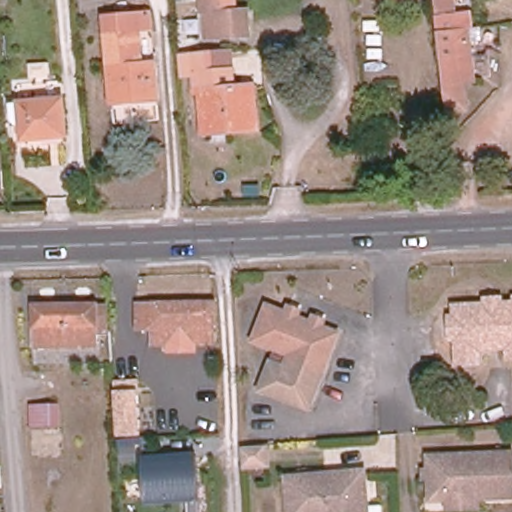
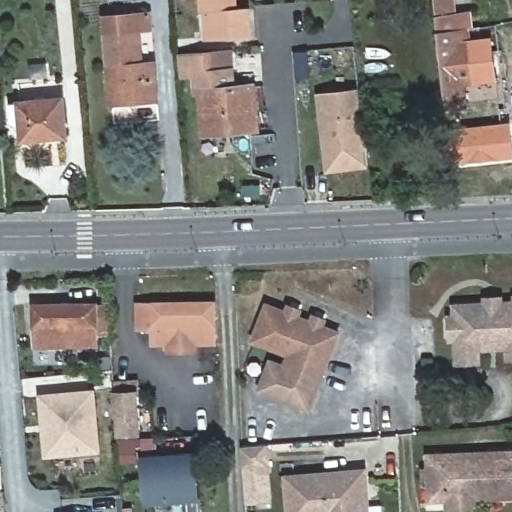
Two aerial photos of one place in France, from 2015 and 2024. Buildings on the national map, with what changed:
unchanged [(248,11),(249,35),(207,38),(205,11),(202,11),(201,0),(235,0),(235,10),(248,11)]
unchanged [(471,45),(475,81),(465,83),(467,110),(447,112),(435,0),(454,0),(455,15),(470,13),(472,26),(459,28),(461,46),(471,45)]
unchanged [(112,103),(105,18),(138,16),(150,15),(151,29),(139,30),(142,64),(154,63),(157,99),(112,103)]
unchanged [(256,129),(206,133),(202,93),(195,93),(194,76),(180,76),(178,56),(231,51),(234,86),(252,85),(256,129)]
new [(326,172),(317,92),(359,88),(368,168),(326,172)]
unchanged [(62,136),(18,140),(15,103),(59,99),(62,136)]
new [(449,130),(512,123),(512,156),(453,163),(449,130)]
unchanged [(457,350),(457,345),(451,340),(450,318),(455,312),(455,306),(485,305),(485,299),(501,298),(501,304),(512,303),(512,358),(508,359),(508,348),(478,349),(479,362),(458,363),(457,350)]
unchanged [(209,332),(215,330),(215,352),(200,352),(200,344),(153,345),(152,329),(137,329),(137,304),(215,302),(215,329),(209,331),(209,332)]
unchanged [(108,334),(97,334),(97,346),(35,347),(35,327),(34,326),(34,305),(97,304),(97,306),(107,306),(108,334)]
unchanged [(266,395),(276,367),(290,372),(295,360),(259,345),(273,310),(291,318),(294,312),(305,316),(303,322),(317,328),(319,322),(329,325),(327,332),(343,338),(314,413),(266,395)]
unchanged [(140,438),(120,439),(117,398),(118,398),(118,388),(136,387),(136,397),(137,397),(140,438)]
new [(103,454),(45,458),(38,393),(97,388),(103,454)]
unchanged [(269,465),(242,467),(241,447),(267,445),(269,465)]
unchanged [(201,512),(186,512),(185,499),(143,501),(139,454),(195,450),(201,512)]
unchanged [(448,500),(430,500),(429,455),(512,452),(512,497),(479,499),(479,507),(448,508),(448,500)]
unchanged [(2,491),(0,491),(0,469),(1,469),(2,491)]
unchanged [(287,477),(365,471),(368,507),(382,505),(383,512),(290,512),(287,477)]

